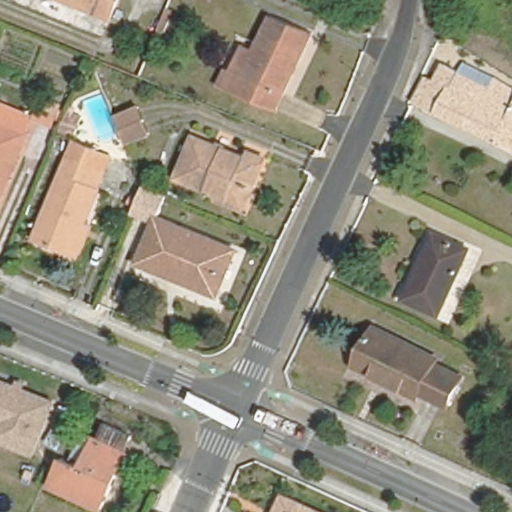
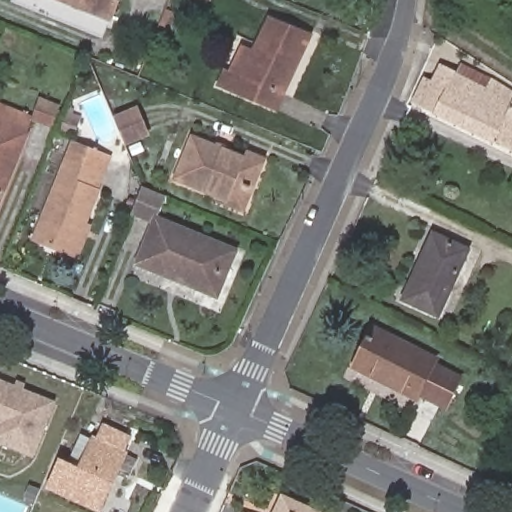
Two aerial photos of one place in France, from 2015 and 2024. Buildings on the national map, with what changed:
unchanged [(68,0),(110,0),(105,15),(68,0)]
unchanged [(242,40),(252,44),(266,13),(307,32),(275,106),(217,81),(225,65),(231,68),(242,40)]
unchanged [(429,78),(436,81),(443,65),(448,56),(491,80),(512,93),(512,150),(468,126),(418,99),(429,78)]
unchanged [(127,135),(115,105),(140,93),(153,123),(127,135)]
unchanged [(1,213),(0,213),(0,103),(37,117),(44,99),(61,106),(65,108),(56,130),(52,128),(35,122),(32,131),(34,132),(1,213)]
unchanged [(167,181),(186,135),(234,155),(236,148),(261,159),(252,184),(247,182),(237,210),(167,181)]
unchanged [(80,265),(70,261),(32,245),(72,146),(113,162),(87,228),(93,230),(80,265)]
unchanged [(127,254),(147,213),(124,203),(136,177),(143,180),(160,188),(149,211),(225,245),(224,249),(205,290),(127,254)]
unchanged [(430,314),(391,296),(423,227),(462,245),(430,314)]
unchanged [(433,357),(430,363),(462,379),(447,408),(415,392),(412,397),(352,365),(372,326),(433,357)]
unchanged [(34,456),(0,445),(0,378),(56,399),(34,456)]
unchanged [(72,413),(65,430),(51,424),(58,407),(72,413)]
unchanged [(130,459),(141,464),(132,481),(121,477),(107,512),(101,512),(49,491),(64,458),(85,467),(87,463),(82,461),(90,441),(100,446),(109,425),(137,439),(130,459)]
unchanged [(41,446),(47,430),(62,436),(56,452),(41,446)]
unchanged [(310,512),(275,512),(282,499),(310,512)]

